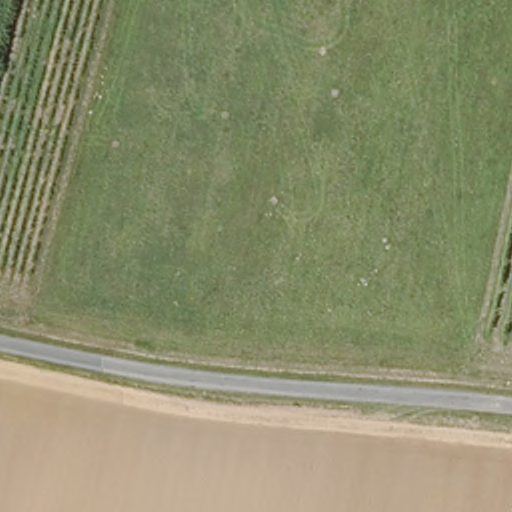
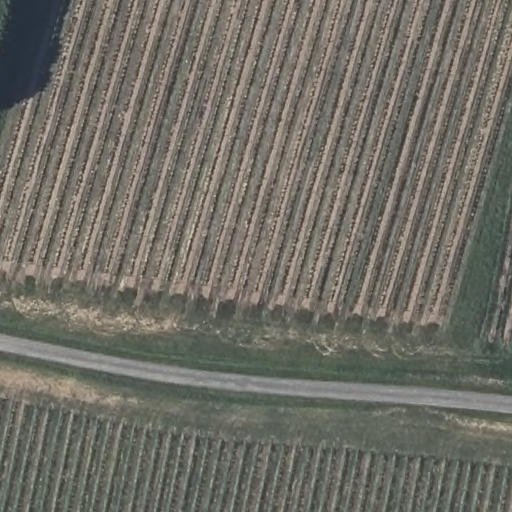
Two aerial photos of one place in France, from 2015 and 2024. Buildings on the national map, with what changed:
[]

